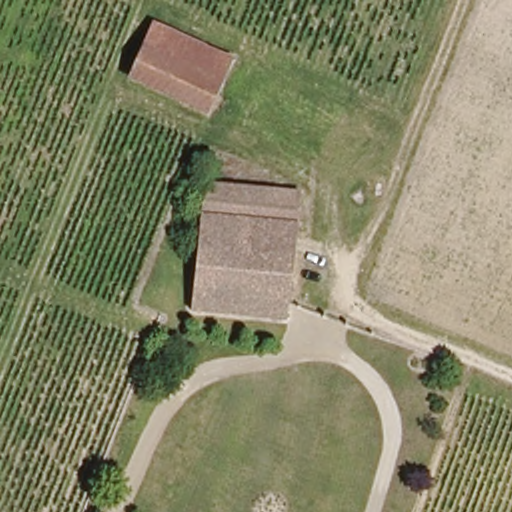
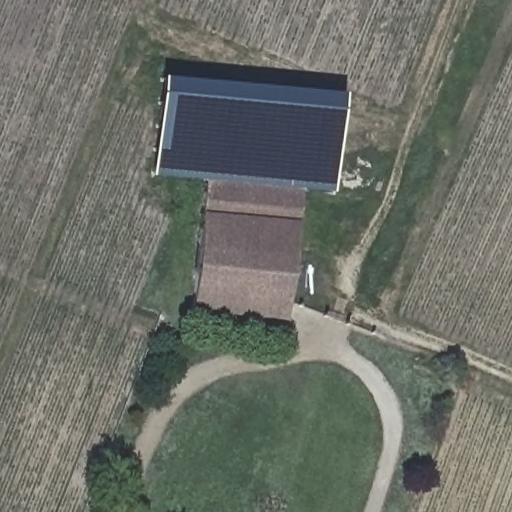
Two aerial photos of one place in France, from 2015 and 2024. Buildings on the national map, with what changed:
demolished [(140,63),(150,36),(226,69),(215,95),(140,63)]
new [(203,180),(150,176),(159,77),(342,94),(332,193),(304,190),(202,184),(203,180)]
unchanged [(288,319),(189,311),(193,265),(202,184),(304,190),(291,290),(288,319)]

